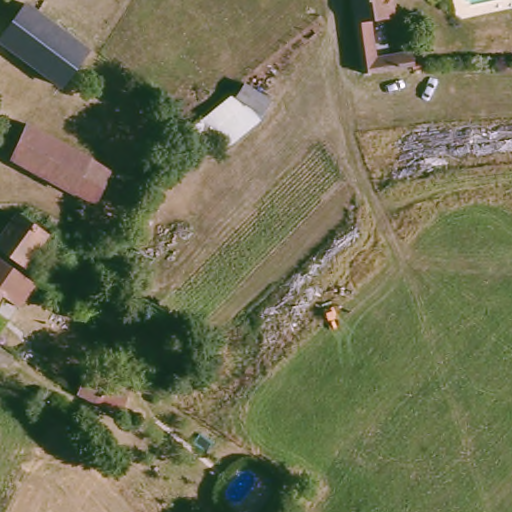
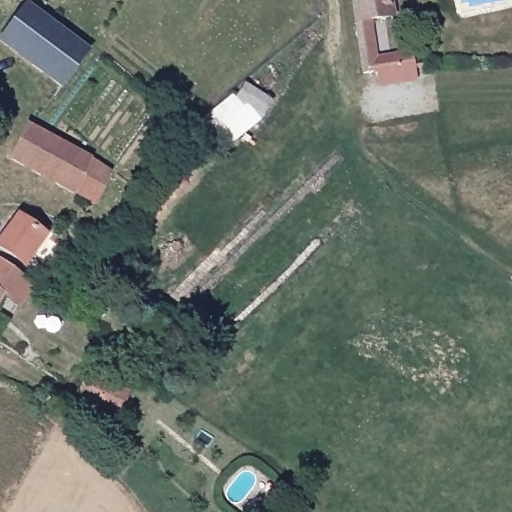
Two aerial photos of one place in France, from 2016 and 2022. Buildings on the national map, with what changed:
unchanged [(390,0),(393,19),(372,21),(375,59),(412,53),(413,68),(362,74),(357,23),(353,0),(390,0)]
unchanged [(0,40),(25,4),(88,51),(62,87),(0,44),(0,40)]
unchanged [(196,134),(195,125),(235,94),(241,94),(245,83),(275,102),(267,114),(270,120),(225,153),(210,147),(189,174),(175,159),(196,134)]
unchanged [(91,159),(113,175),(99,205),(95,203),(13,159),(14,157),(31,125),(55,139),(91,159)]
unchanged [(0,248),(0,245),(20,217),(48,238),(27,268),(0,248)]
unchanged [(40,283),(27,300),(11,291),(0,306),(0,258),(24,273),(40,283)]
unchanged [(127,389),(115,409),(83,391),(95,372),(127,389)]

